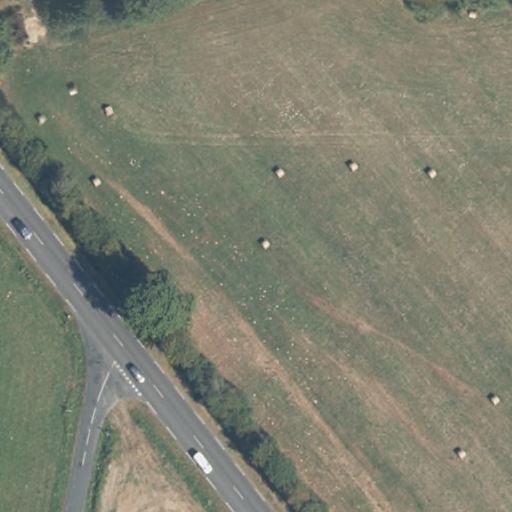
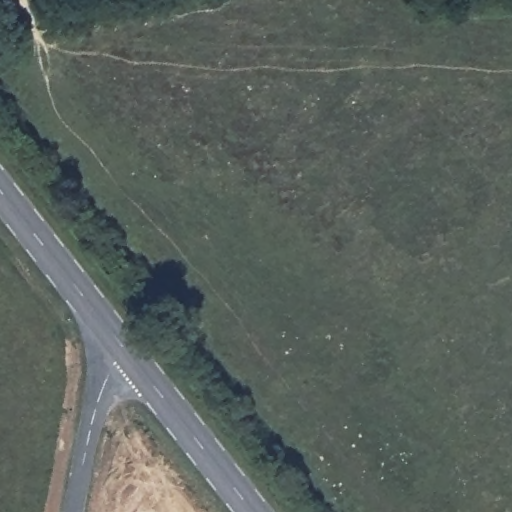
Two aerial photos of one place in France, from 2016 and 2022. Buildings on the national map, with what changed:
[]

